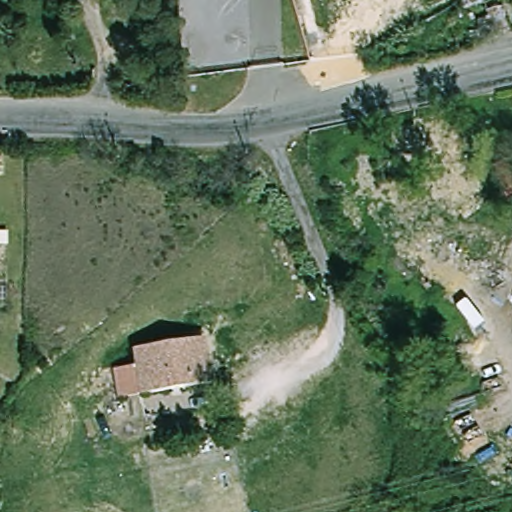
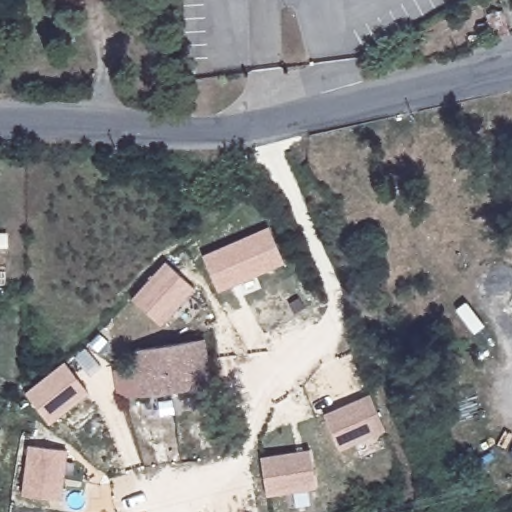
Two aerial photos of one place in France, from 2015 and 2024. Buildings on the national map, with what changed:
new [(285,264),(218,293),(203,254),(268,227),(285,264)]
unchanged [(5,235),(5,248),(0,248),(0,235),(5,235)]
new [(195,288),(160,326),(130,298),(165,262),(195,288)]
unchanged [(213,379),(145,389),(121,393),(117,368),(141,364),(138,346),(206,336),(213,379)]
new [(89,393),(50,425),(24,393),(65,362),(89,393)]
new [(370,394),(385,431),(339,450),(325,413),(370,394)]
new [(68,450),(62,499),(22,494),(28,445),(68,450)]
new [(310,449),(317,488),(266,497),(260,457),(310,449)]

